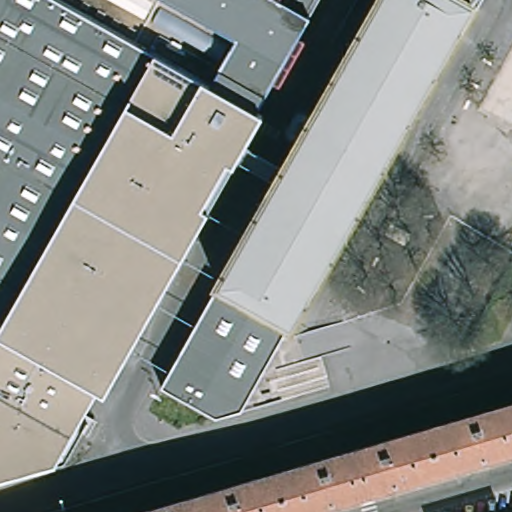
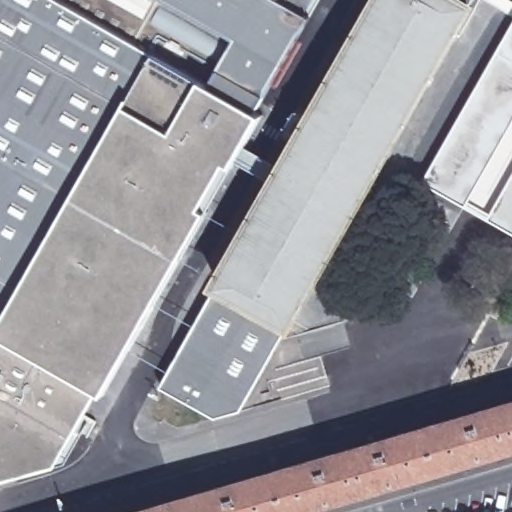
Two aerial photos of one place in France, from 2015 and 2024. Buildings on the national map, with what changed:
unchanged [(41,472),(0,483),(0,0),(280,0),(285,3),(291,6),(305,14),(310,17),(272,85),(257,112),(248,107),(89,387),(101,393),(104,395),(86,426),(63,466),(41,472)]
unchanged [(376,0),(460,0),(469,5),(287,327),(285,325),(256,309),(215,286),(376,0)]
unchanged [(287,0),(312,0),(305,14),(291,6),(285,3),(287,0)]
new [(424,180),(512,28),(512,122),(465,205),(424,180)]
unchanged [(101,393),(89,387),(248,107),(257,112),(260,114),(263,115),(233,167),(231,166),(227,164),(202,208),(205,210),(208,212),(104,395),(101,393)]
new [(512,178),(512,231),(490,218),(512,178)]
unchanged [(215,286),(256,309),(285,325),(238,410),(211,417),(188,404),(156,386),(204,305),(215,286)]
unchanged [(512,447),(293,512),(135,512),(512,401),(512,447)]

